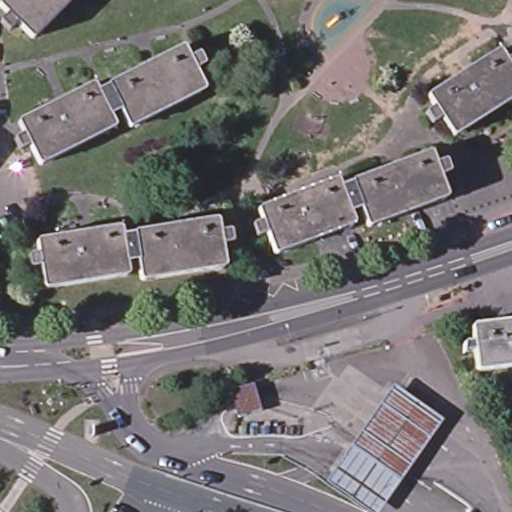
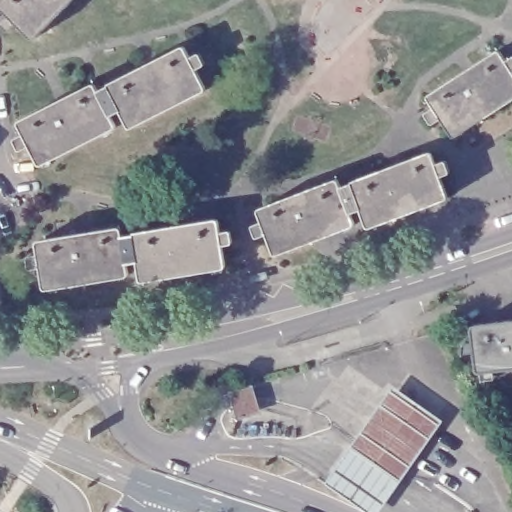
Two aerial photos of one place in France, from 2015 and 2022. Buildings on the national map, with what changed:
unchanged [(0,7),(0,0),(67,0),(30,36),(16,23),(8,30),(0,21),(7,14),(0,7)]
unchanged [(430,119),(438,114),(427,97),(498,47),(510,65),(512,64),(512,100),(455,138),(445,124),(437,130),(430,119)]
unchanged [(22,135),(15,118),(93,80),(106,107),(115,103),(107,85),(185,48),(194,66),(202,62),(205,61),(210,72),(199,77),(207,92),(128,130),(120,112),(110,117),(115,126),(35,164),(27,145),(17,150),(13,139),(22,135)]
unchanged [(260,224),(255,208),(254,206),(331,178),(335,176),(345,202),(355,198),(348,181),(387,167),(428,151),(435,170),(446,166),(450,177),(440,181),(446,197),(365,227),(359,209),(348,212),(352,223),(272,253),(265,236),(256,239),(252,228),(260,224)]
unchanged [(33,248),(31,235),(113,222),(115,234),(127,233),(126,229),(210,217),(212,228),(223,227),(225,241),(214,243),(217,265),(135,280),(130,256),(120,258),(122,270),(38,284),(35,262),(25,264),(22,249),(33,248)]
unchanged [(469,327),(512,321),(512,367),(476,372),(473,354),(462,356),(461,344),(472,343),(469,327)]
unchanged [(227,389),(251,382),(260,410),(235,418),(227,389)]
unchanged [(438,417),(372,512),(359,512),(318,485),(387,385),(438,417)]

